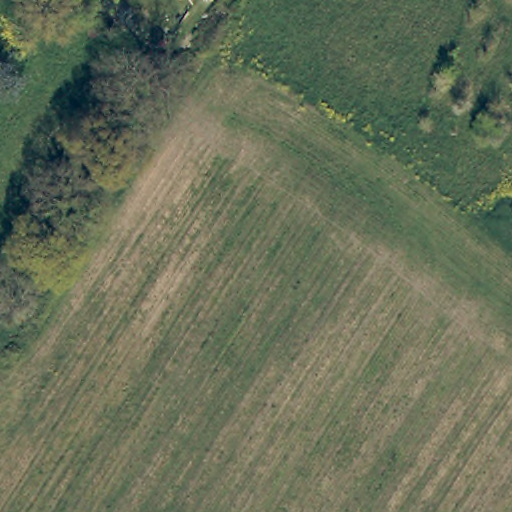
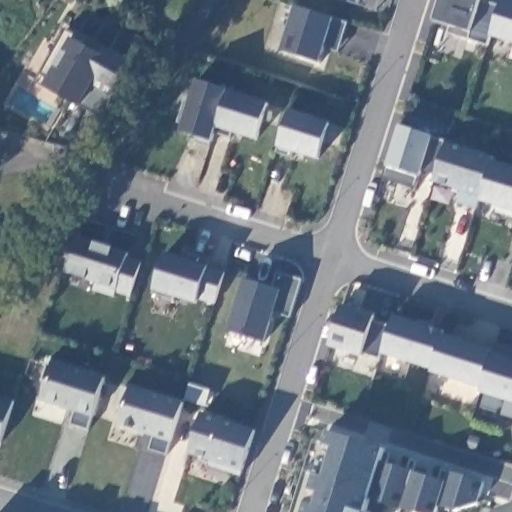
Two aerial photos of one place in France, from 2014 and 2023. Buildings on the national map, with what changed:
new [(341,0),(359,0),(357,4),(341,0)]
new [(490,38),(487,45),(449,32),(452,24),(432,19),(438,0),(492,0),(503,4),(504,0),(512,0),(512,44),(490,38)]
new [(326,45),(320,63),(282,51),(296,4),(333,18),(346,23),(337,49),(326,45)]
new [(110,95),(94,86),(81,109),(41,89),(71,35),(103,55),(108,45),(134,60),(110,95)]
new [(257,139),(217,128),(211,141),(179,133),(194,80),(267,101),(257,139)]
new [(320,160),(276,148),(288,109),(330,121),(320,160)]
new [(480,203),(477,209),(459,204),(463,190),(434,181),(436,175),(422,171),(415,190),(381,179),(385,165),(398,127),(492,157),(491,161),(512,167),(512,212),(480,203)]
new [(131,297),(118,293),(116,298),(94,292),(96,282),(59,271),(71,232),(128,250),(126,257),(140,262),(131,297)]
new [(212,307),(197,303),(154,289),(165,250),(207,264),(224,269),(212,307)]
new [(290,317),(275,314),(265,344),(228,333),(245,278),(273,286),(277,272),(303,281),(290,317)]
new [(500,415),(506,401),(479,393),(481,388),(430,374),(431,371),(380,356),(377,361),(363,358),(327,347),(340,304),(376,315),(373,322),(391,328),(396,315),(512,355),(512,419),(500,415)]
new [(89,429),(72,424),(75,411),(40,399),(52,359),(104,376),(89,429)]
new [(167,454),(149,449),(153,436),(119,427),(131,385),(184,402),(167,454)]
new [(0,444),(0,396),(14,400),(0,444)]
new [(240,477),(209,468),(212,462),(207,460),(208,452),(201,449),(197,459),(188,456),(200,412),(255,429),(240,477)]
new [(477,504),(452,510),(440,507),(438,512),(406,512),(369,501),(366,512),(303,512),(306,503),(316,505),(319,493),(310,491),(314,474),(324,478),(333,446),(324,443),(328,431),(386,449),(382,460),(446,481),(450,469),(484,481),(477,504)]

